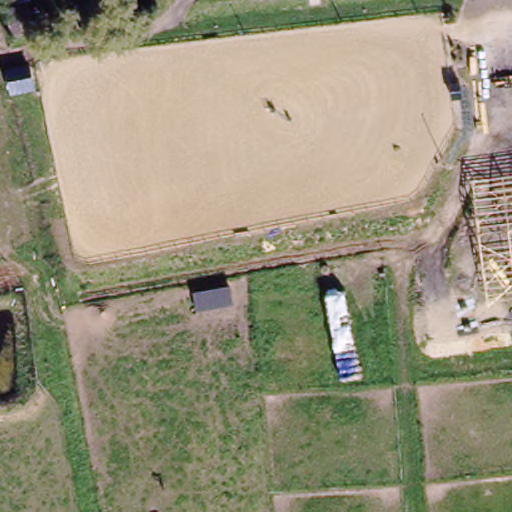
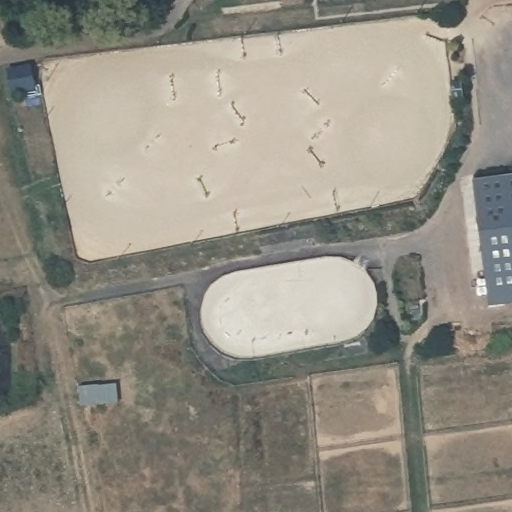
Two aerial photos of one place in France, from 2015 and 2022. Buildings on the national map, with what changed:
demolished [(512,168),(498,170),(503,215),(489,218),(482,172),(496,169),(494,150),(512,147),(512,168)]
new [(512,302),(487,305),(471,179),(512,174),(512,302)]

